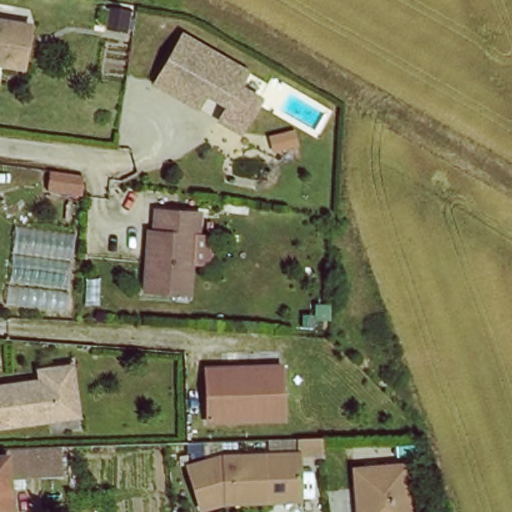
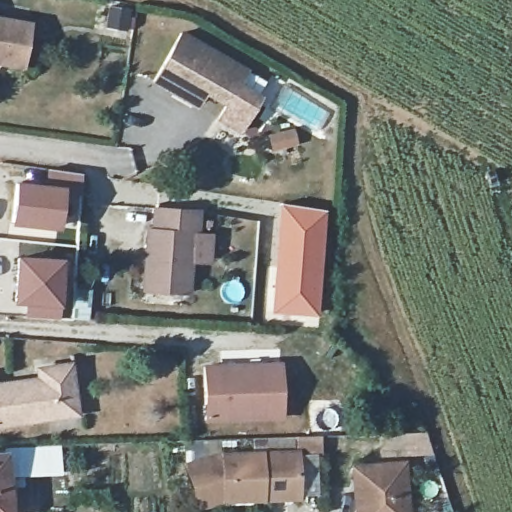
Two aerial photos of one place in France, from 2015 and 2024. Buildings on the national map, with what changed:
unchanged [(20,67),(0,63),(0,21),(27,25),(20,67)]
unchanged [(165,95),(147,86),(172,34),(242,68),(234,84),(256,95),(239,130),(216,119),(223,105),(197,92),(190,107),(165,95)]
new [(293,127),(297,145),(271,152),(265,135),(293,127)]
new [(45,186),(47,171),(82,176),(80,195),(65,192),(60,231),(10,226),(15,183),(45,186)]
demolished [(79,198),(49,194),(51,175),(80,179),(79,198)]
new [(272,246),(277,202),(325,209),(317,316),(269,314),(272,246)]
unchanged [(153,235),(155,215),(197,218),(196,240),(190,239),(188,298),(144,295),(147,235),(153,235)]
new [(17,257),(65,260),(60,307),(60,320),(25,317),(25,306),(13,305),(17,257)]
unchanged [(284,420),(207,421),(205,371),(222,370),(222,376),(250,376),(250,368),(282,368),(284,420)]
unchanged [(0,426),(0,388),(40,383),(38,374),(67,371),(68,380),(73,419),(0,426)]
unchanged [(288,453),(291,498),(255,500),(255,493),(215,494),(190,502),(178,467),(213,456),(288,453)]
unchanged [(9,512),(0,512),(0,460),(52,454),(54,475),(5,480),(9,512)]
unchanged [(402,462),(405,512),(355,512),(351,465),(402,462)]

